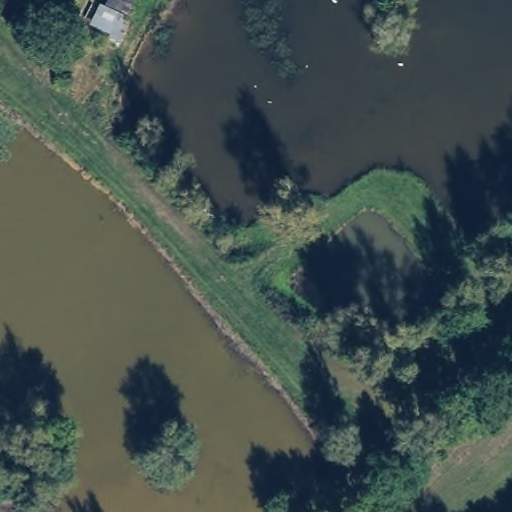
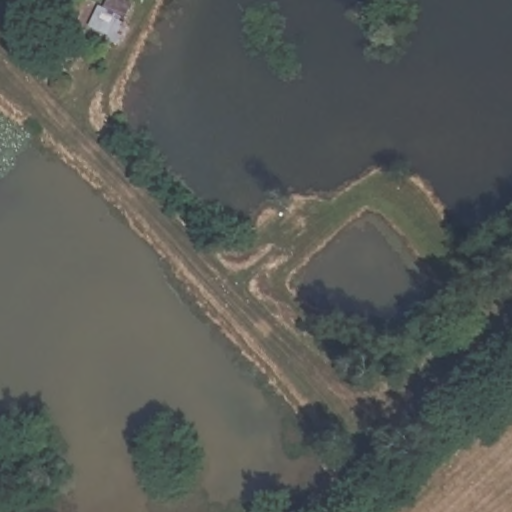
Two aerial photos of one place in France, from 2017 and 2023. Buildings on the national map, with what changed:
unchanged [(129,0),(135,2),(123,44),(87,32),(100,0),(129,0)]

